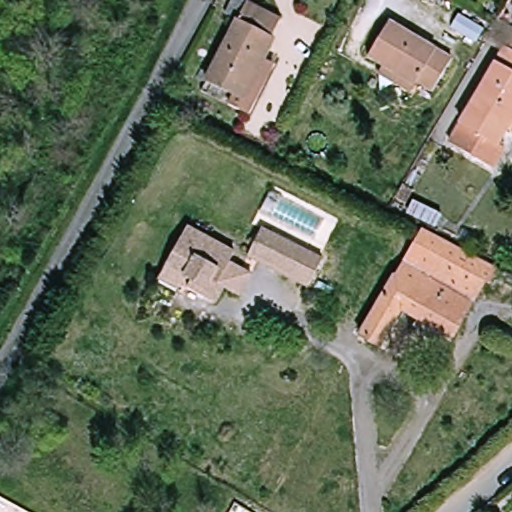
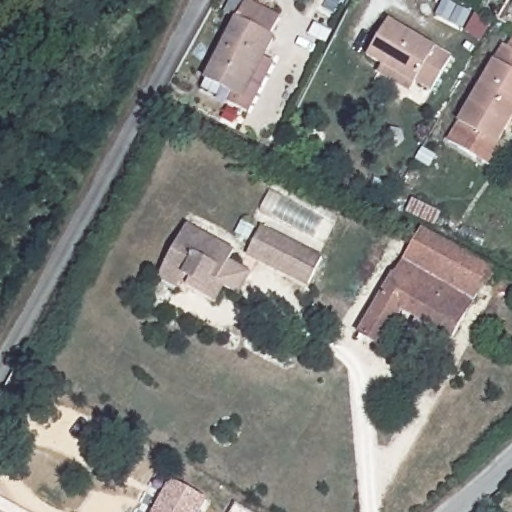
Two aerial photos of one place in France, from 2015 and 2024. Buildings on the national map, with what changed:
unchanged [(222,100),(226,87),(203,75),(249,0),(258,0),(289,13),(271,52),(281,58),(253,123),(222,100)]
unchanged [(383,72),(388,63),(372,56),(390,19),(457,50),(441,84),(424,76),(422,81),(418,89),(383,72)]
unchanged [(466,113),(508,38),(512,41),(512,115),(501,133),(466,113)]
unchanged [(459,126),(484,140),(475,154),(450,139),(459,126)]
unchanged [(241,292),(225,283),(216,299),(188,283),(186,285),(160,270),(167,260),(189,220),(237,248),(232,257),(254,270),(241,292)]
unchanged [(248,250),(264,221),(296,238),(281,267),(248,250)]
unchanged [(491,282),(487,281),(475,301),(402,261),(419,227),(498,265),(491,282)]
unchanged [(326,253),(311,282),(281,267),(296,238),(326,253)]
unchanged [(402,261),(475,301),(454,339),(435,329),(429,339),(411,329),(418,318),(401,309),(379,347),(359,335),(402,261)]
new [(206,501),(200,512),(153,512),(170,480),(206,501)]

